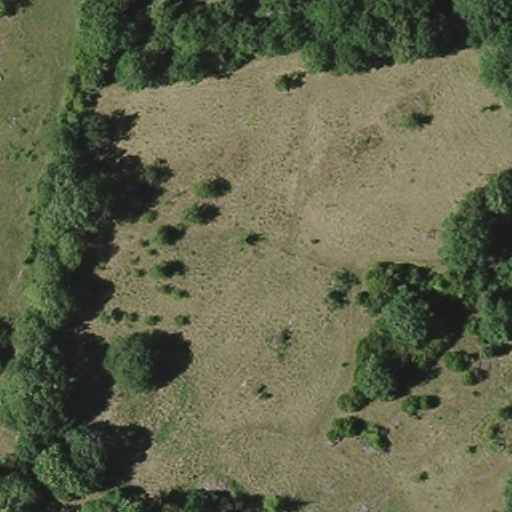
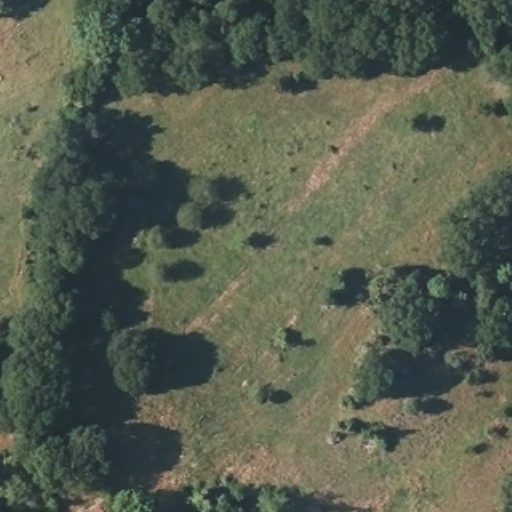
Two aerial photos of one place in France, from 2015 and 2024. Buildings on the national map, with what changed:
unchanged [(122,512),(79,512),(107,491),(122,512)]

